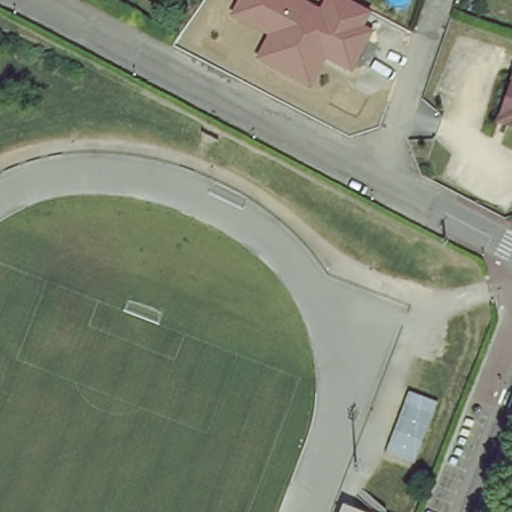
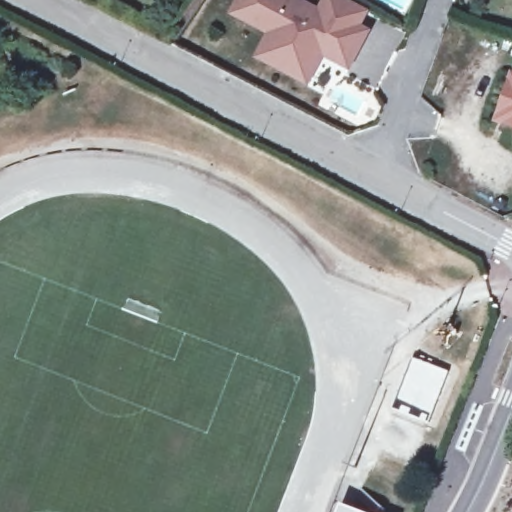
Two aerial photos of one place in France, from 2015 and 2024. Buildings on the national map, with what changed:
unchanged [(238,0),(307,0),(322,7),(325,0),(350,0),(372,10),(365,26),(371,29),(353,71),(325,59),(313,88),(257,60),(268,36),(231,13),(238,0)]
unchanged [(497,110),(510,73),(512,74),(512,126),(503,122),(495,119),(497,110)]
unchanged [(430,398),(409,460),(380,449),(402,388),(430,398)]
unchanged [(367,512),(344,512),(347,505),(367,512)]

